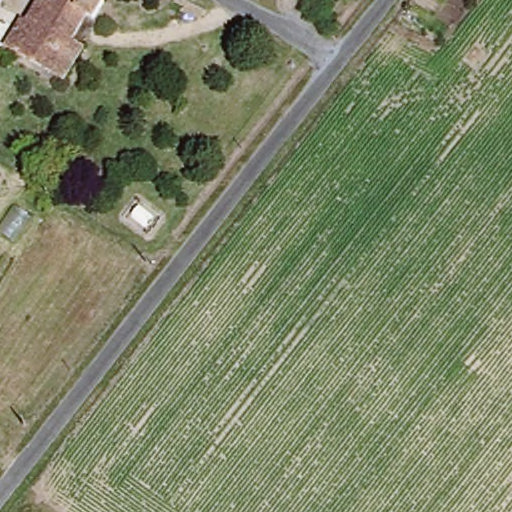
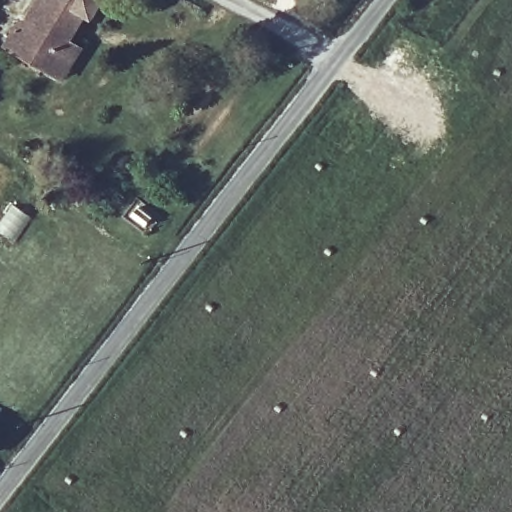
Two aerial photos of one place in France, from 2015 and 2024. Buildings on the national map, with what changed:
unchanged [(88,12),(79,8),(44,64),(8,42),(18,23),(24,26),(38,0),(94,0),(88,12)]

